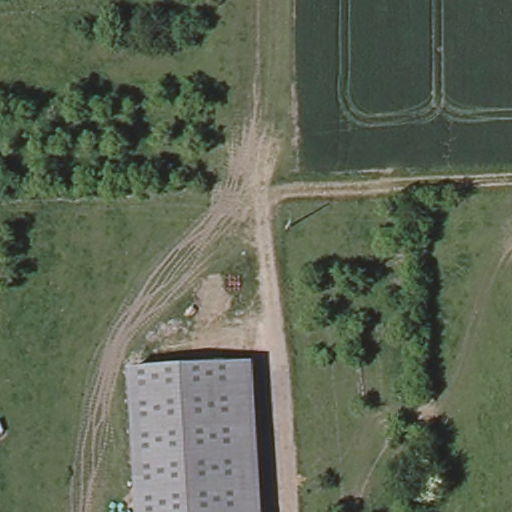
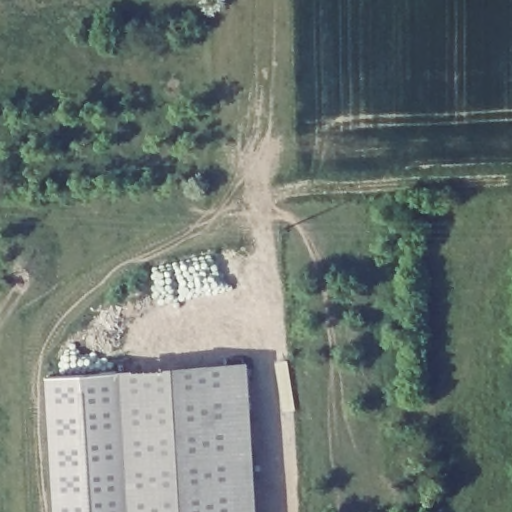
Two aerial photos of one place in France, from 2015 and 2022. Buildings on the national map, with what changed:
unchanged [(150,369),(210,366),(234,364),(243,512),(143,512),(134,371),(150,369)]
new [(143,512),(57,512),(50,376),(134,371),(143,512)]

